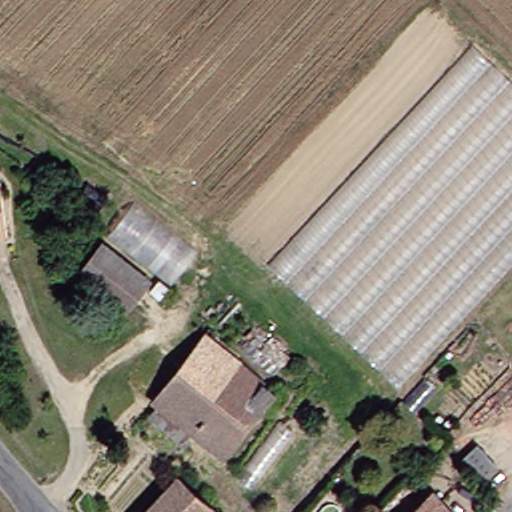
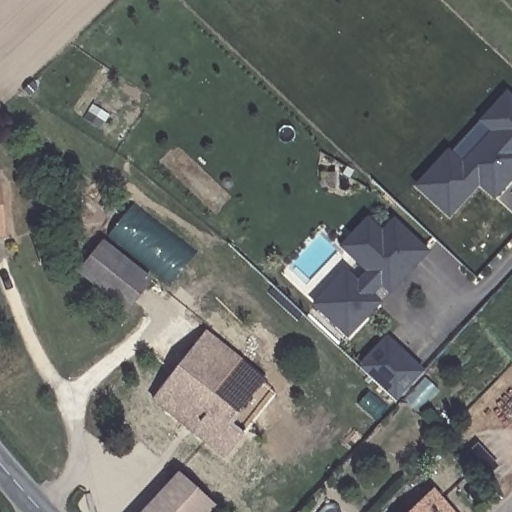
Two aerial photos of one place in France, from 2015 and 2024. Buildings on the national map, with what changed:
demolished [(238,227),(437,8),(476,42),(274,260),(238,227)]
demolished [(512,259),(400,378),(274,260),(476,42),(512,76),(512,259)]
new [(460,158),(491,124),(480,113),(504,86),(512,94),(512,166),(491,189),(476,175),(447,207),(415,179),(446,145),(460,158)]
unchanged [(5,185),(9,234),(0,234),(0,185),(5,185)]
unchanged [(132,204),(195,250),(168,287),(153,275),(105,239),(132,204)]
new [(347,268),(358,279),(369,267),(358,256),(395,216),(428,248),(390,287),(382,279),(371,291),(379,299),(348,332),(315,300),(347,268)]
new [(343,242),(369,216),(383,229),(358,256),(343,242)]
unchanged [(99,280),(69,255),(90,230),(120,255),(99,280)]
unchanged [(120,255),(162,291),(142,316),(99,280),(120,255)]
unchanged [(151,401),(159,392),(183,364),(210,330),(276,386),(225,448),(201,427),(193,436),(151,401)]
new [(386,333),(424,366),(396,398),(360,363),(386,333)]
unchanged [(211,500),(200,512),(145,512),(179,473),(211,500)]
unchanged [(431,489),(454,512),(408,512),(431,489)]

